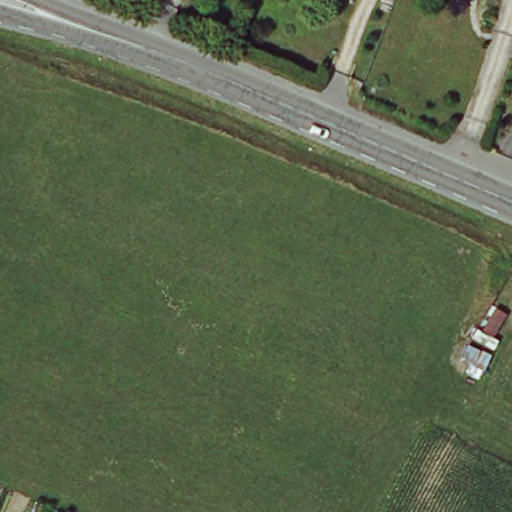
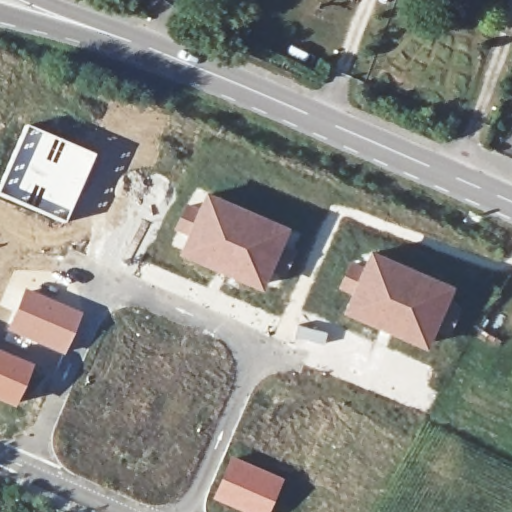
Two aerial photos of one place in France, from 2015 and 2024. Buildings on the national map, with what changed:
new [(24,124),(92,153),(63,223),(0,196),(0,179),(24,124)]
new [(183,212),(193,217),(206,189),(291,224),(280,253),(262,290),(177,254),(185,235),(173,230),(183,212)]
new [(350,259),(363,263),(371,246),(457,283),(427,347),(343,312),(350,293),(337,287),(350,259)]
new [(23,288),(82,312),(62,357),(5,332),(23,288)]
new [(31,363),(12,408),(0,403),(0,350),(31,363)]
new [(286,476),(269,512),(245,512),(213,498),(232,454),(286,476)]

